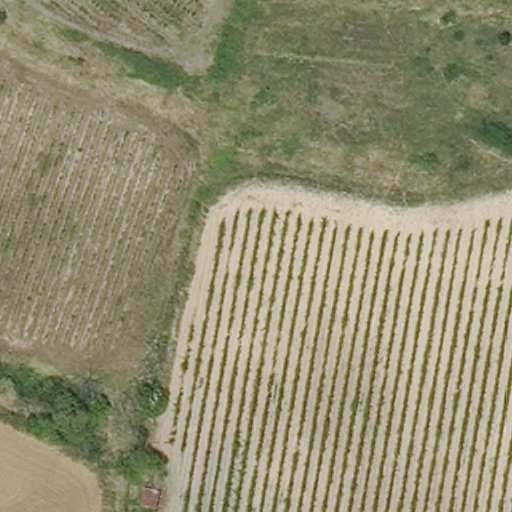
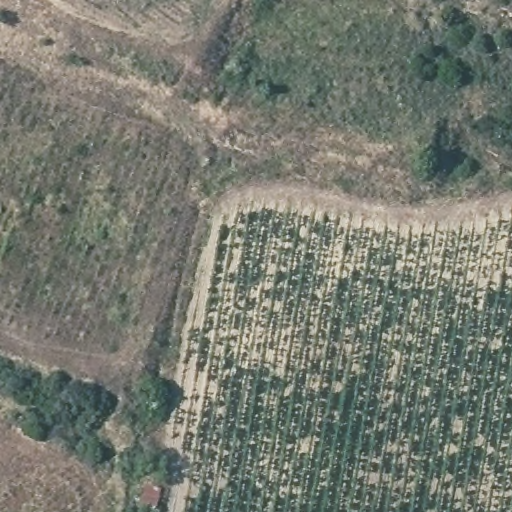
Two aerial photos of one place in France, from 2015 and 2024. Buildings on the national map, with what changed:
unchanged [(162,479),(160,499),(138,497),(139,476),(162,479)]

